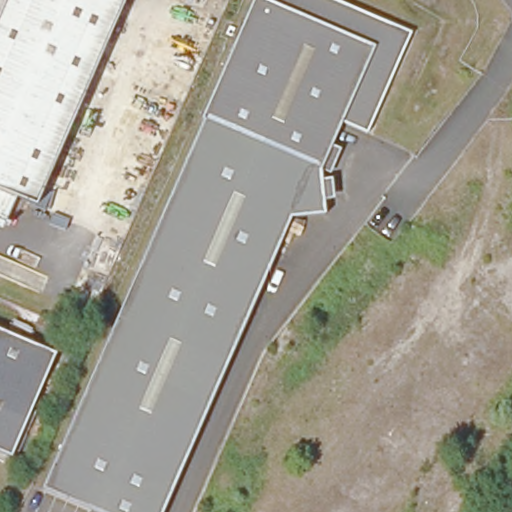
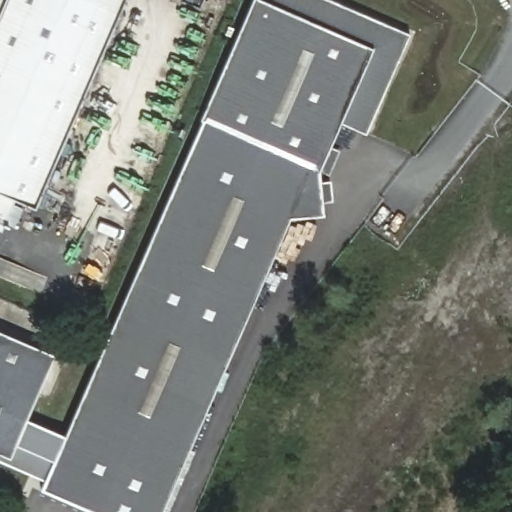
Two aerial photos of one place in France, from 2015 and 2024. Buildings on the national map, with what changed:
unchanged [(29,204),(10,199),(0,223),(0,0),(117,0),(29,204)]
unchanged [(410,33),(365,132),(339,121),(317,169),(305,196),(264,178),(276,151),(199,116),(251,0),(339,0),(410,33)]
unchanged [(199,116),(276,151),(264,178),(305,196),(317,169),(322,215),(287,216),(270,256),(268,255),(162,202),(199,116)]
unchanged [(101,512),(41,486),(162,202),(268,255),(270,256),(160,512),(101,512)]
unchanged [(0,461),(0,343),(53,365),(12,466),(0,461)]
new [(12,466),(32,419),(64,433),(44,480),(12,466)]

